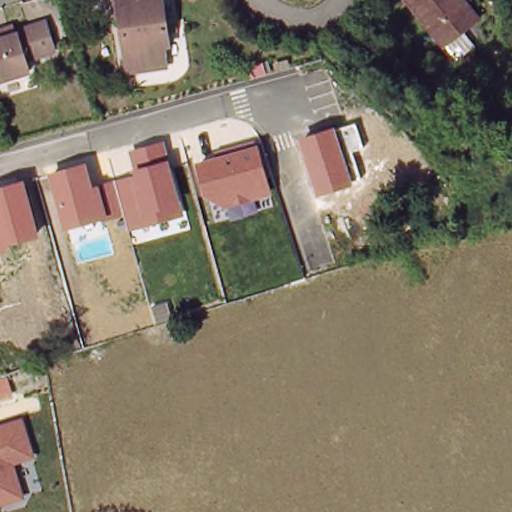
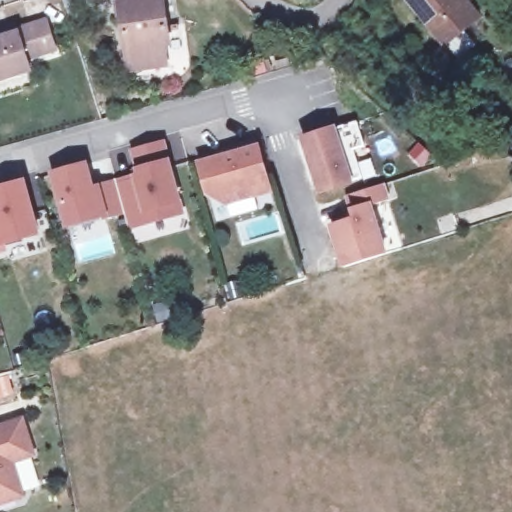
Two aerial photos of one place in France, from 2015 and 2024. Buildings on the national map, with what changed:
unchanged [(126,0),(172,0),(176,28),(168,29),(173,66),(135,71),(126,0)]
unchanged [(451,46),(417,0),(471,0),(486,19),(451,46)]
unchanged [(0,81),(0,38),(23,31),(22,27),(53,17),(63,48),(34,57),(37,69),(0,81)]
unchanged [(364,148),(352,151),(361,178),(352,181),(354,184),(317,195),(299,137),(336,126),(336,128),(356,123),(364,148)]
unchanged [(254,140),(256,145),(259,144),(273,194),(226,208),(205,195),(196,162),(217,155),(216,151),(254,140)]
unchanged [(165,141),(185,215),(129,230),(124,216),(103,222),(101,217),(64,229),(49,173),(87,162),(94,186),(137,174),(130,151),(165,141)]
unchanged [(40,235),(4,245),(6,252),(0,254),(0,187),(25,179),(40,235)]
new [(353,222),(345,198),(379,187),(384,205),(366,210),(381,258),(342,271),(329,229),(353,222)]
unchanged [(26,417),(37,456),(15,463),(27,498),(0,506),(0,426),(26,417)]

